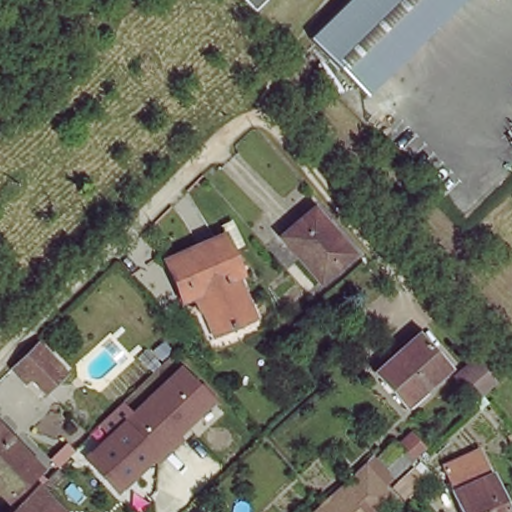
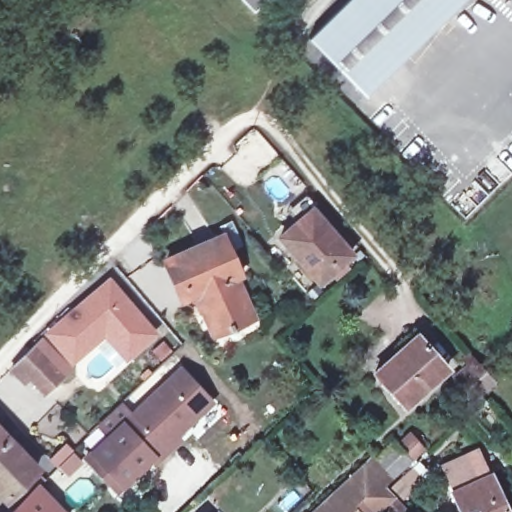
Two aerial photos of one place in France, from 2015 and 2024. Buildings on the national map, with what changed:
unchanged [(253,10),(243,0),(264,0),(253,10)]
unchanged [(366,99),(312,42),(355,0),(469,0),(366,99)]
unchanged [(315,206),(356,249),(325,276),(286,234),(315,206)]
unchanged [(231,224),(241,250),(236,252),(256,303),(218,318),(203,279),(188,284),(173,247),(231,224)]
new [(108,275),(158,333),(126,362),(103,337),(72,365),(43,333),(108,275)]
unchanged [(423,328),(452,362),(409,400),(384,372),(381,366),(423,328)]
new [(73,368),(45,396),(29,379),(24,384),(10,367),(40,335),(73,368)]
demolished [(23,358),(39,341),(45,348),(43,351),(65,376),(57,383),(51,388),(23,358)]
new [(161,363),(151,353),(163,342),(173,352),(161,363)]
unchanged [(217,405),(116,493),(83,457),(179,364),(217,405)]
unchanged [(8,499),(0,492),(0,428),(40,468),(8,499)]
unchanged [(76,447),(68,456),(60,463),(53,456),(69,440),(76,447)]
unchanged [(385,491),(392,499),(404,511),(403,512),(390,512),(384,506),(378,512),(318,512),(351,481),(348,477),(359,465),(364,469),(374,460),(394,483),(387,490),(385,491)]
unchanged [(512,511),(512,512),(466,512),(454,486),(493,468),(512,511)]
unchanged [(63,512),(18,512),(41,490),(63,512)]

